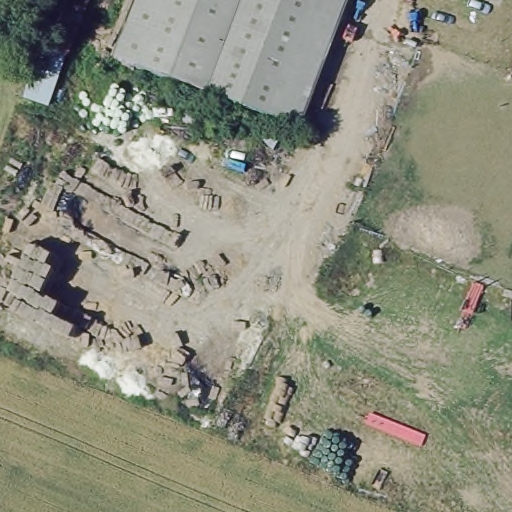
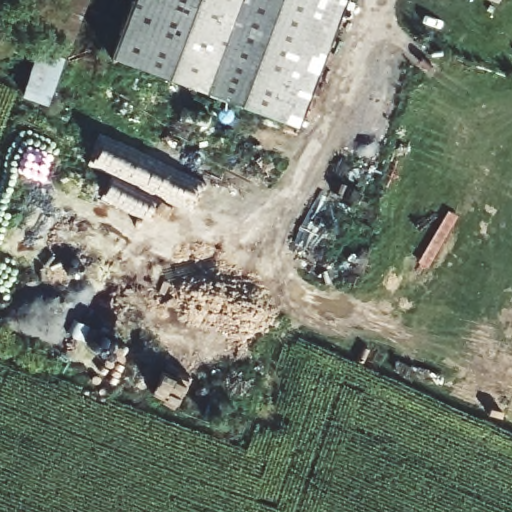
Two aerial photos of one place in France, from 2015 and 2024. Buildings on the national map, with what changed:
unchanged [(48,116),(19,102),(55,0),(92,0),(48,116)]
unchanged [(140,0),(348,0),(300,131),(117,58),(140,0)]

